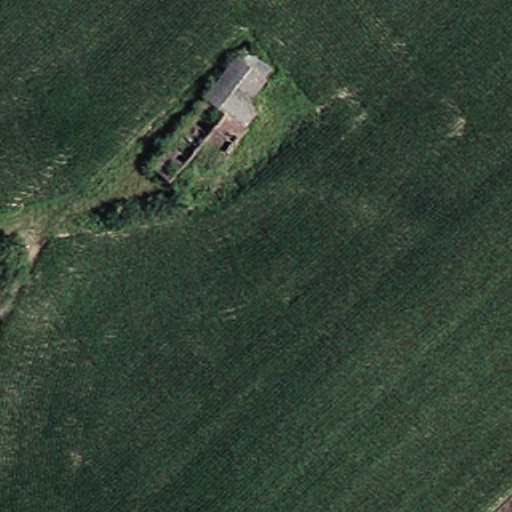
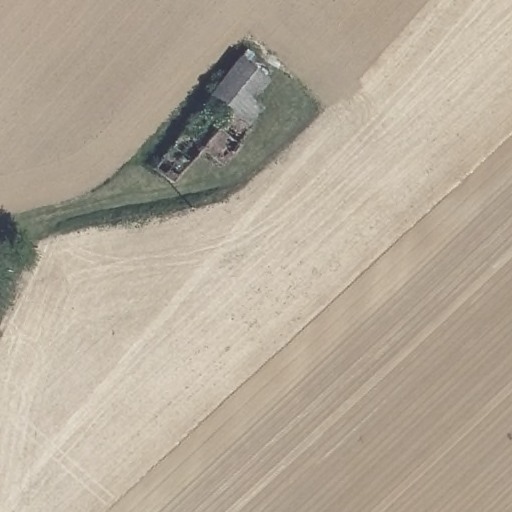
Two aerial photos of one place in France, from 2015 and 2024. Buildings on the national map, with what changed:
unchanged [(254,74),(255,77),(257,83),(255,89),(250,94),(256,99),(229,140),(202,129),(185,156),(166,145),(235,42),(264,60),(254,74)]

